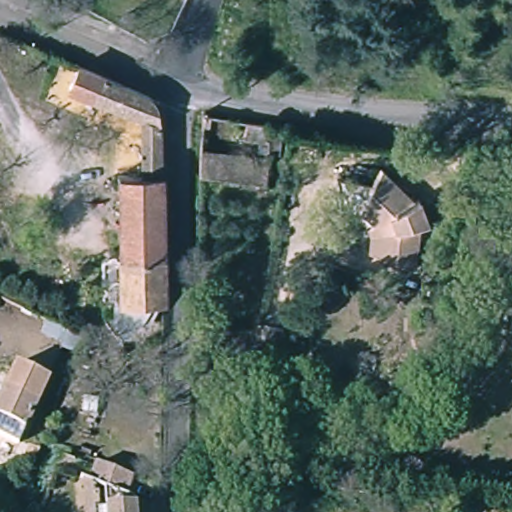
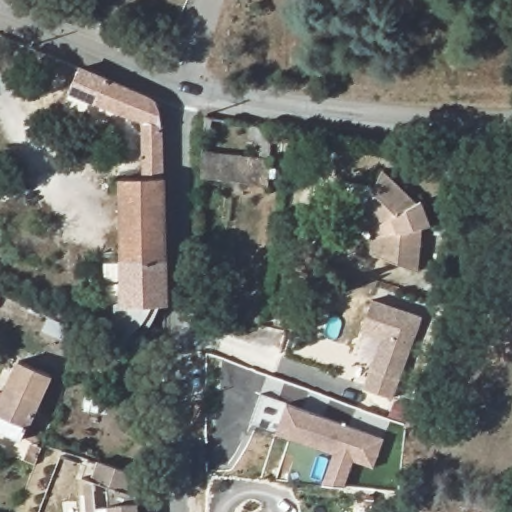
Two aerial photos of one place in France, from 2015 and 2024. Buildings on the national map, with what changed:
unchanged [(120,269),(119,183),(143,182),(143,125),(70,95),(80,72),(146,100),(151,104),(158,120),(161,130),(163,151),(164,270),(120,269)]
unchanged [(284,134),(281,161),(269,160),(268,192),(203,182),(203,157),(253,163),(256,148),(248,148),(249,129),(284,134)]
unchanged [(371,229),(369,220),(359,209),(342,205),(338,171),(374,178),(383,159),(417,193),(421,191),(432,216),(423,217),(418,262),(379,247),(371,243),(371,229)]
unchanged [(165,309),(165,310),(159,310),(158,319),(153,329),(148,335),(142,330),(131,340),(126,343),(111,327),(114,324),(114,308),(121,308),(120,269),(164,270),(165,309)]
unchanged [(0,293),(1,294),(0,296),(0,293)]
new [(363,391),(381,339),(359,332),(371,301),(419,319),(390,401),(363,391)]
unchanged [(26,441),(0,429),(0,411),(23,361),(56,377),(26,441)]
new [(321,488),(332,456),(274,435),(284,406),(383,442),(372,470),(352,463),(342,490),(321,488)]
unchanged [(136,483),(129,502),(138,506),(138,512),(109,512),(108,495),(93,489),(101,469),(104,471),(136,483)]

